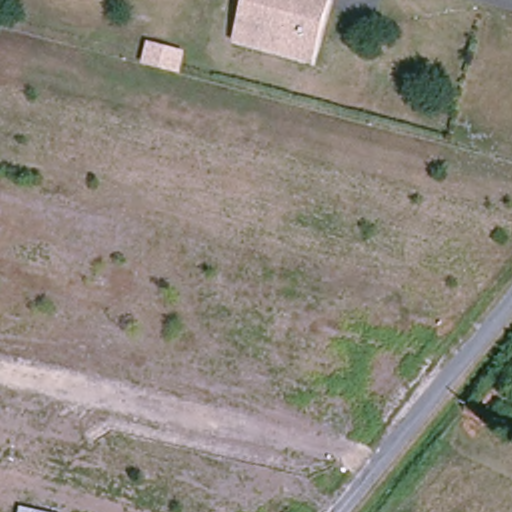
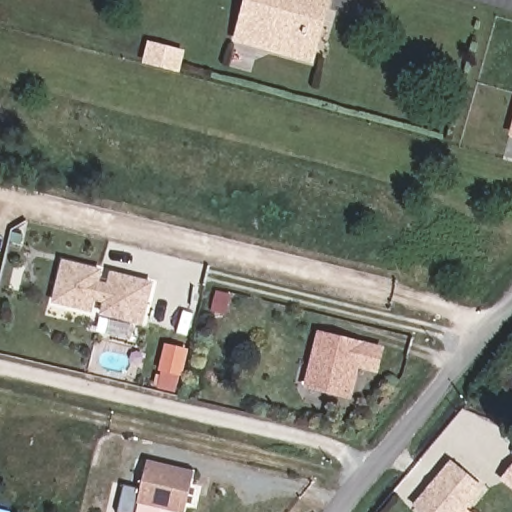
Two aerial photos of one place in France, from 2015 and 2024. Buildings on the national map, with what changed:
unchanged [(253,0),(336,0),(336,3),(318,63),(242,42),(253,0)]
demolished [(119,43),(117,59),(86,50),(91,35),(119,43)]
new [(149,41),(189,51),(182,74),(142,64),(149,41)]
new [(105,269),(102,283),(109,284),(111,271),(155,281),(144,325),(101,317),(103,302),(96,301),(93,313),(54,304),(64,261),(105,269)]
new [(317,331),(385,346),(378,373),(361,370),(353,400),(305,388),(317,331)]
new [(186,512),(176,512),(137,504),(134,512),(120,512),(126,486),(142,489),(147,461),(196,471),(186,512)]
new [(486,489),(467,512),(422,512),(415,507),(452,461),(486,489)]
new [(512,473),(512,484),(507,480),(512,473)]

